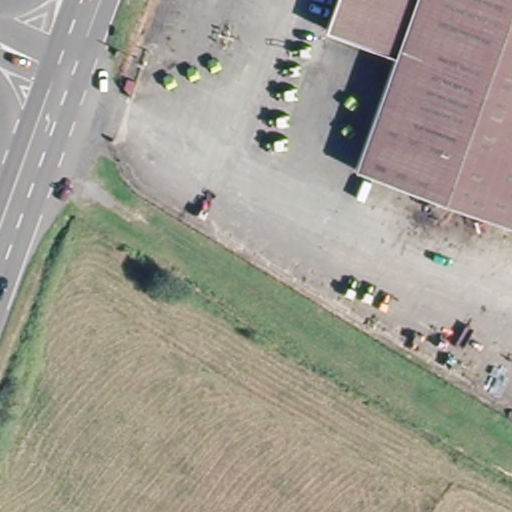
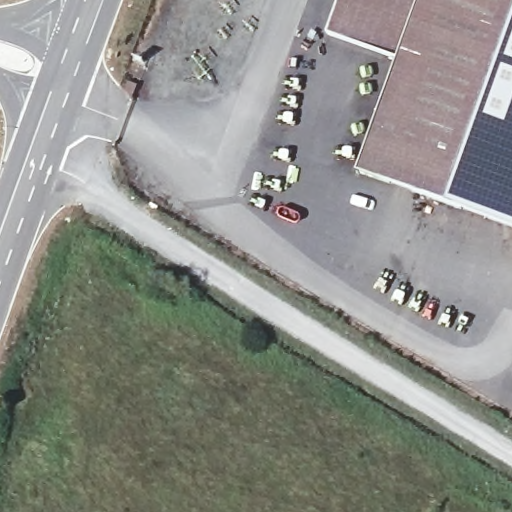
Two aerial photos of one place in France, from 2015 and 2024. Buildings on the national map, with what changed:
unchanged [(395,57),(326,32),(337,0),(512,0),(512,14),(465,144),(512,162),(512,225),(512,226),(355,169),(395,57)]
unchanged [(465,144),(512,14),(512,162),(465,144)]

